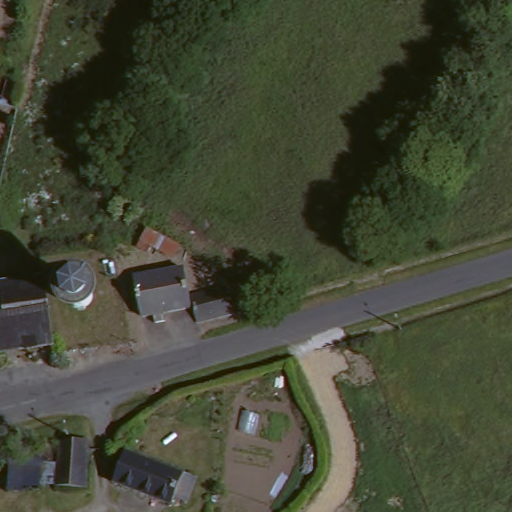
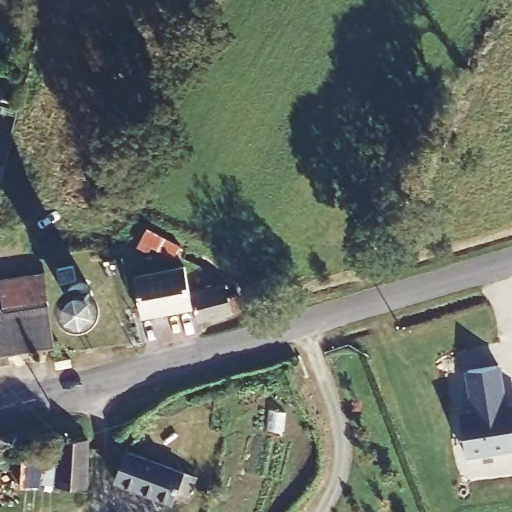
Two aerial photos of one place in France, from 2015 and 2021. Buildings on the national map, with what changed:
unchanged [(160,239),(174,247),(168,257),(154,250),(136,240),(143,229),(160,239)]
unchanged [(191,307),(143,317),(135,277),(184,267),(191,307)]
unchanged [(54,307),(59,343),(0,352),(0,315),(9,313),(4,281),(49,275),(54,307)]
unchanged [(191,296),(224,287),(227,298),(238,296),(242,311),(198,322),(191,296)]
new [(499,365),(507,406),(512,406),(512,447),(510,447),(511,449),(465,455),(459,414),(473,412),(468,370),(499,365)]
unchanged [(88,487),(56,485),(60,442),(88,440),(88,487)]
unchanged [(169,462),(193,472),(181,502),(125,481),(136,451),(169,462)]

